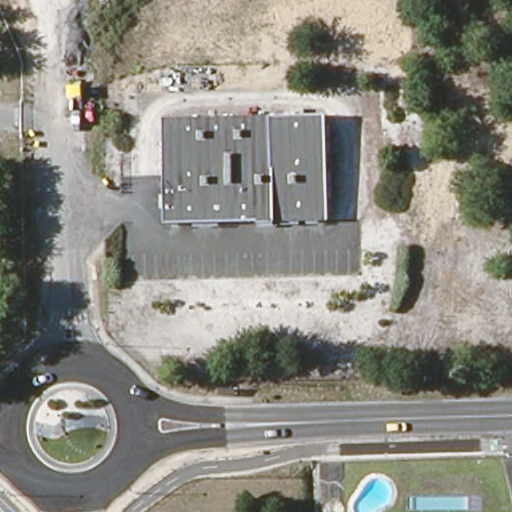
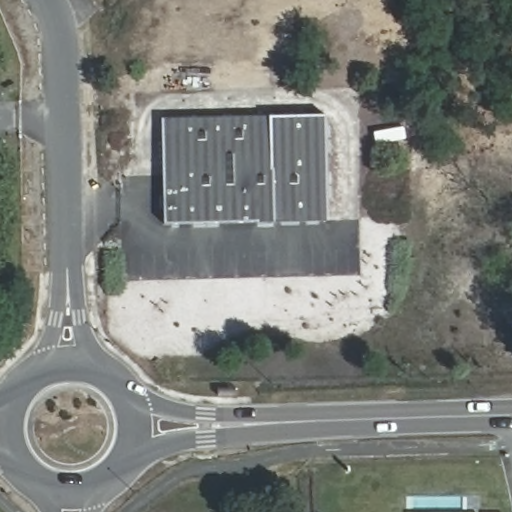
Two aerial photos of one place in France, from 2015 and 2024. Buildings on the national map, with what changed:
unchanged [(167,119),(332,117),(334,222),(169,224),(167,119)]

